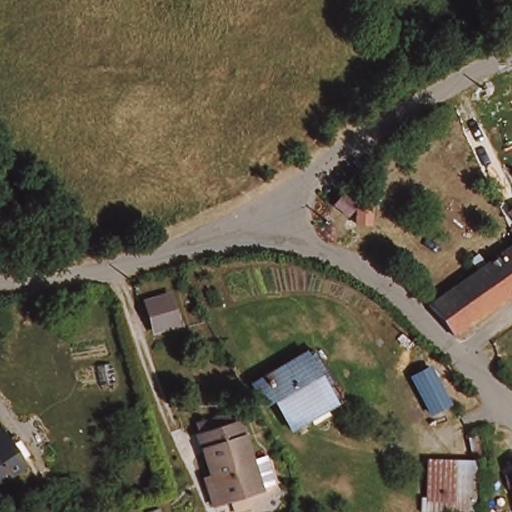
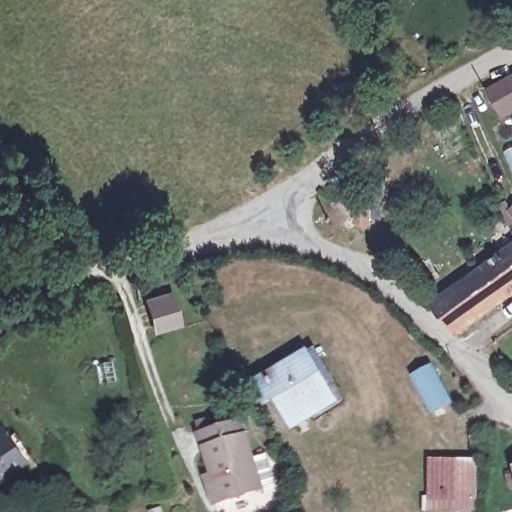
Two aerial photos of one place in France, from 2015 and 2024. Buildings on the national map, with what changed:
new [(512,77),(512,111),(501,117),(487,90),(512,77)]
unchanged [(368,221),(359,231),(349,222),(358,212),(368,221)]
unchanged [(379,239),(379,241),(366,240),(367,225),(380,226),(379,239)]
unchanged [(473,320),(457,331),(428,305),(512,248),(512,294),(511,295),(473,320)]
unchanged [(156,302),(181,294),(190,322),(166,330),(156,302)]
unchanged [(307,355),(335,398),(300,418),(286,395),(275,401),(263,382),(307,355)]
unchanged [(423,367),(440,399),(421,408),(408,376),(423,367)]
unchanged [(201,473),(210,471),(201,436),(200,427),(236,416),(242,426),(252,465),(265,462),(272,491),(260,494),(260,496),(220,506),(209,509),(201,473)]
unchanged [(3,442),(12,456),(20,450),(33,468),(25,476),(0,490),(0,444),(3,442)]
unchanged [(417,496),(418,456),(473,459),(470,512),(429,512),(410,511),(409,495),(417,496)]

